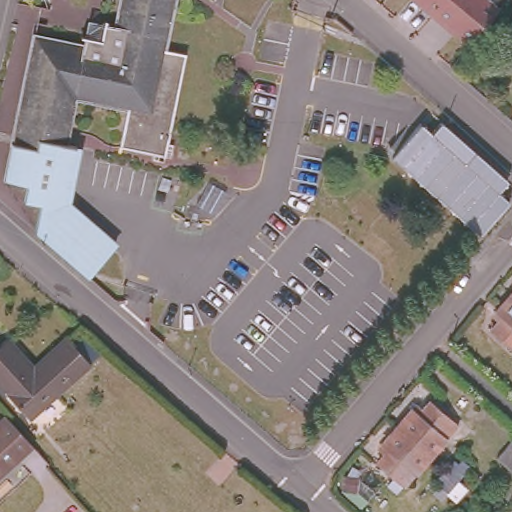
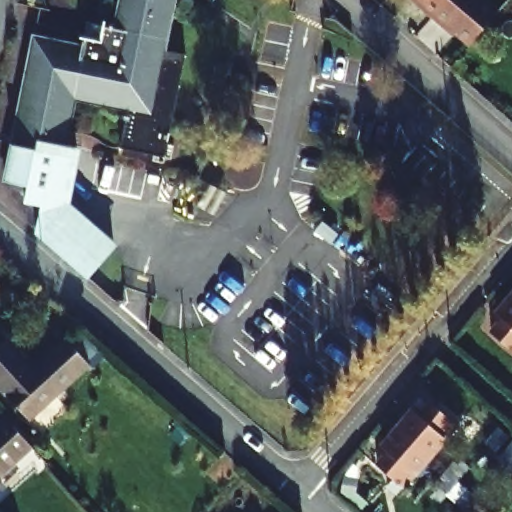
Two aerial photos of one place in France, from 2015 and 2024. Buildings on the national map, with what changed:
unchanged [(162,44),(182,48),(165,151),(119,143),(127,104),(73,95),(65,141),(75,143),(65,203),(112,247),(87,277),(35,230),(40,201),(24,198),(27,182),(5,177),(33,32),(83,41),(87,27),(98,17),(113,20),(117,0),(170,0),(162,44)]
unchanged [(498,11),(488,23),(470,44),(446,24),(445,26),(432,16),(420,5),(422,3),(417,0),(484,0),(498,11)]
demolished [(509,181),(499,194),(508,202),(484,235),(392,159),(421,125),(432,135),(439,124),(509,181)]
unchanged [(512,291),(507,286),(512,281),(512,291)]
unchanged [(493,315),(487,309),(492,304),(507,286),(512,291),(512,346),(486,324),(493,315)]
unchanged [(37,364),(63,340),(86,366),(85,366),(33,415),(0,378),(0,344),(10,335),(37,364)]
unchanged [(409,409),(415,403),(422,408),(428,400),(456,424),(430,454),(397,424),(409,409)]
unchanged [(17,425),(30,440),(0,468),(0,412),(2,410),(17,425)]
unchanged [(377,459),(385,451),(378,445),(383,440),(397,424),(430,454),(405,483),(377,459)]
unchanged [(496,455),(512,437),(512,470),(506,464),(496,455)]
unchanged [(435,482),(440,477),(437,474),(443,466),(451,457),(455,459),(459,454),(467,462),(455,477),(445,489),(435,482)]

